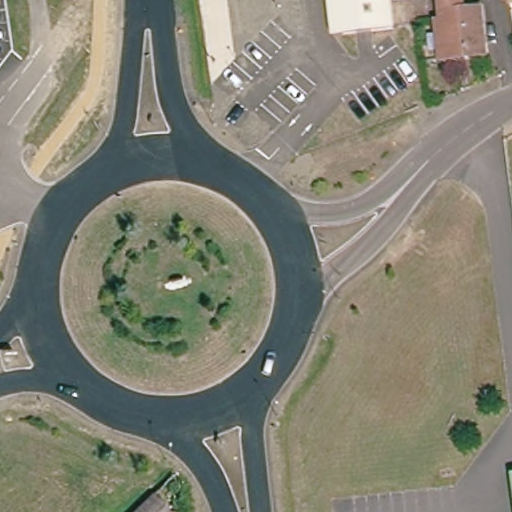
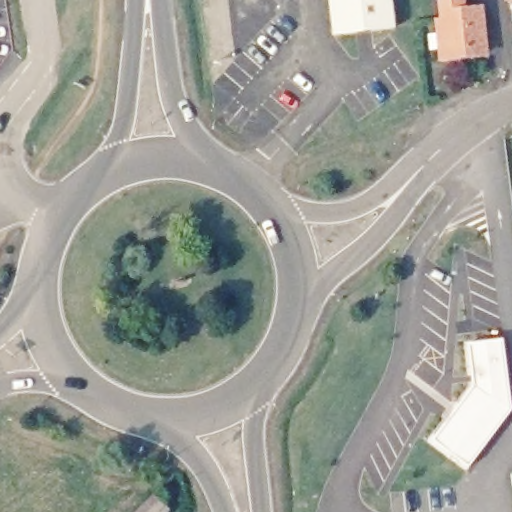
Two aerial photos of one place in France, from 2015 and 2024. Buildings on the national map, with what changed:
unchanged [(403,28),(340,34),(336,0),(400,0),(403,28)]
unchanged [(444,45),(441,18),(449,17),(446,0),(468,0),(469,7),(486,7),(492,52),(468,55),(446,58),(444,45)]
new [(431,439),(473,382),(468,344),(503,341),(512,397),(512,409),(469,466),(431,439)]
unchanged [(509,512),(506,476),(512,475),(512,512),(509,512)]
unchanged [(162,512),(141,512),(151,502),(162,512)]

